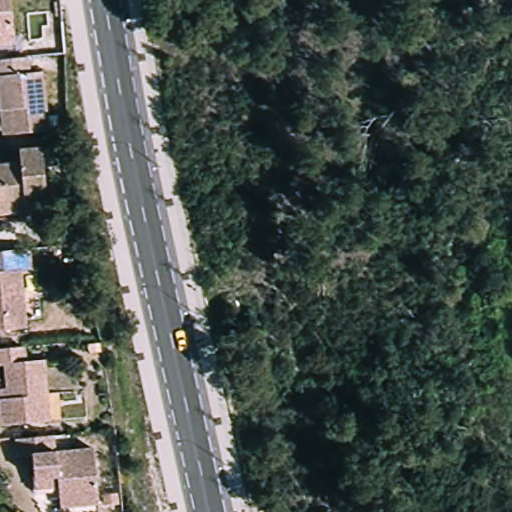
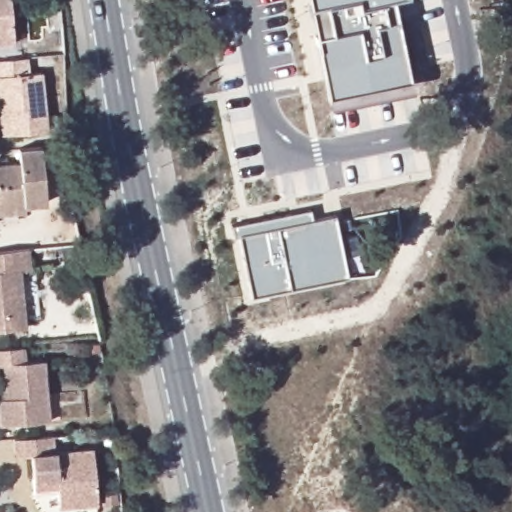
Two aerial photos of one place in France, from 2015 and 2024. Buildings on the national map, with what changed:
unchanged [(10,0),(13,39),(0,40),(0,0),(10,0)]
new [(391,21),(403,19),(416,83),(334,100),(321,36),(337,33),(332,5),(316,9),(314,0),(401,0),(387,3),(391,21)]
unchanged [(4,60),(22,58),(23,74),(36,72),(41,131),(10,135),(0,136),(0,60),(4,60)]
unchanged [(0,214),(0,166),(18,165),(17,150),(40,147),(45,204),(22,205),(23,212),(0,214)]
new [(256,233),(270,230),(268,220),(296,214),(316,210),(318,220),(341,215),(354,278),(257,298),(244,236),(240,237),(237,226),(254,222),(256,233)]
unchanged [(29,245),(31,265),(20,266),(25,323),(0,325),(0,247),(29,245)]
unchanged [(11,383),(9,360),(0,361),(0,345),(27,342),(28,357),(47,355),(53,416),(5,420),(2,394),(5,394),(4,384),(11,383)]
unchanged [(28,480),(26,457),(11,458),(10,440),(49,436),(51,453),(90,450),(95,505),(55,508),(53,485),(29,487),(28,480)]

